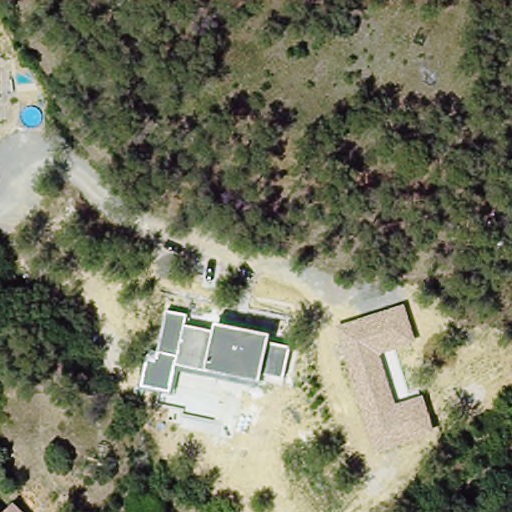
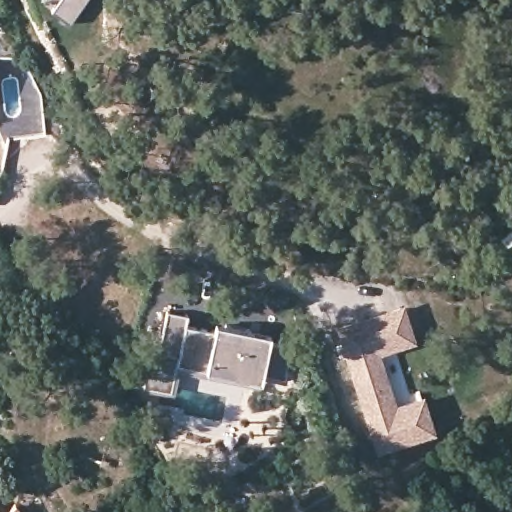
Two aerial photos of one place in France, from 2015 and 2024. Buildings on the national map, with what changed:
new [(70,23),(51,10),(58,0),(86,0),(70,23)]
unchanged [(338,326),(404,305),(416,342),(381,354),(397,404),(425,395),(436,432),(378,452),(338,326)]
unchanged [(149,350),(159,353),(168,310),(188,315),(186,326),(215,331),(217,322),(271,334),(269,342),(291,348),(285,377),(263,373),(261,381),(207,370),(177,364),(170,392),(141,386),(149,350)]
unchanged [(27,512),(11,512),(19,504),(27,512)]
unchanged [(2,512),(0,512),(0,510),(2,512)]

